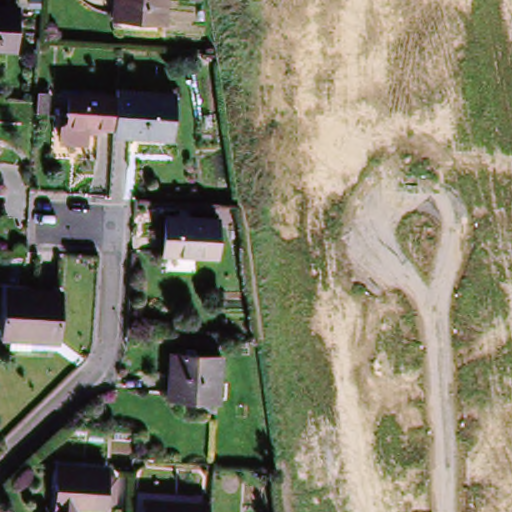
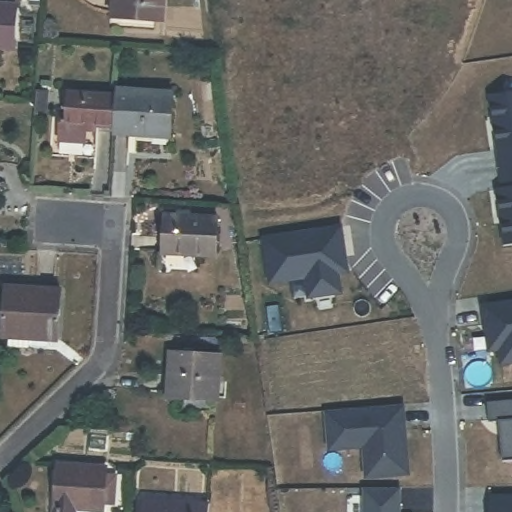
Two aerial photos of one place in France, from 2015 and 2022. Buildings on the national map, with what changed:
unchanged [(161,0),(160,21),(110,19),(110,0),(161,0)]
unchanged [(0,53),(0,5),(20,7),(15,54),(0,53)]
unchanged [(113,96),(112,87),(175,91),(174,133),(111,129),(113,96)]
new [(500,169),(490,96),(512,92),(512,167),(500,169)]
unchanged [(62,93),(113,96),(111,129),(72,126),(71,137),(51,139),(51,123),(59,123),(62,93)]
new [(503,243),(496,189),(502,188),(500,169),(512,167),(512,242),(503,243)]
unchanged [(162,249),(164,214),(219,216),(218,251),(162,249)]
new [(347,273),(337,274),(335,262),(340,292),(307,297),(305,278),(269,283),(262,238),(340,226),(343,246),(347,273)]
unchanged [(30,346),(11,344),(11,336),(2,335),(7,282),(58,286),(55,339),(31,338),(30,346)]
new [(485,325),(482,305),(512,301),(512,361),(500,363),(498,349),(488,350),(485,325)]
unchanged [(165,396),(168,349),(218,352),(215,399),(165,396)]
new [(512,399),(512,459),(501,460),(500,435),(504,434),(502,420),(488,421),(486,401),(512,399)]
new [(411,477),(369,480),(366,446),(332,449),(329,414),(406,407),(411,477)]
unchanged [(108,502),(100,501),(98,507),(74,507),(73,512),(51,512),(55,461),(104,463),(104,472),(110,472),(108,502)]
new [(363,487),(398,487),(398,512),(363,512),(363,487)]
new [(490,496),(512,495),(512,512),(490,512),(490,496)]
unchanged [(201,512),(139,512),(140,499),(201,502),(201,512)]

